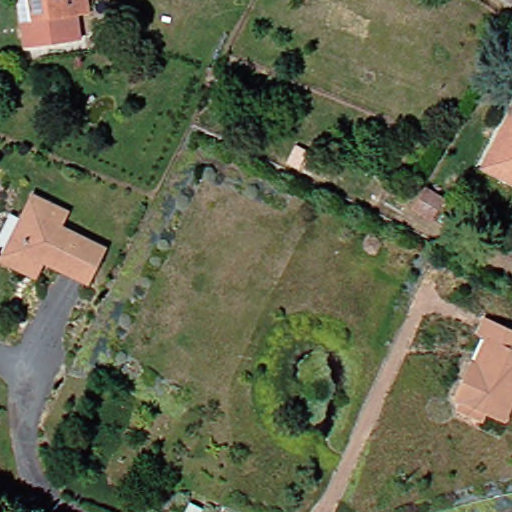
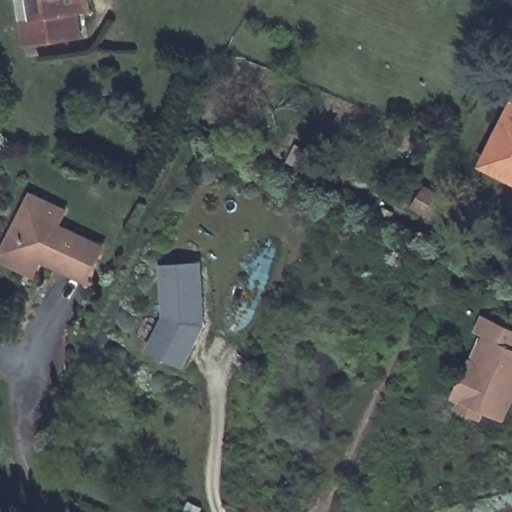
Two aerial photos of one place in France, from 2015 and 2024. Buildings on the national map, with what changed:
unchanged [(87,0),(88,6),(75,7),(76,15),(78,32),(74,32),(22,39),(20,24),(18,14),(17,0),(87,0)]
demolished [(241,129),(231,124),(239,110),(248,115),(241,129)]
unchanged [(512,117),(512,178),(487,166),(512,117)]
demolished [(368,156),(386,165),(374,190),(356,180),(368,156)]
unchanged [(44,280),(3,261),(36,192),(44,196),(16,257),(48,272),(44,280)]
unchanged [(55,257),(48,272),(16,257),(44,196),(72,208),(66,221),(109,241),(93,275),(55,257)]
new [(163,263),(201,261),(204,326),(183,365),(148,347),(164,317),(163,263)]
unchanged [(460,397),(451,393),(469,357),(478,361),(488,338),(475,332),(483,314),(512,328),(512,409),(506,420),(486,411),(481,422),(455,409),(460,397)]

